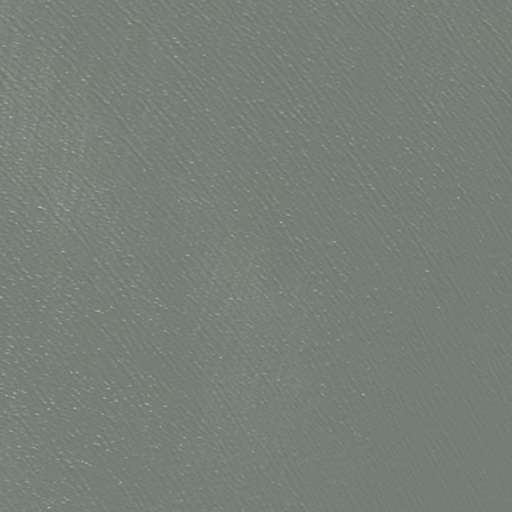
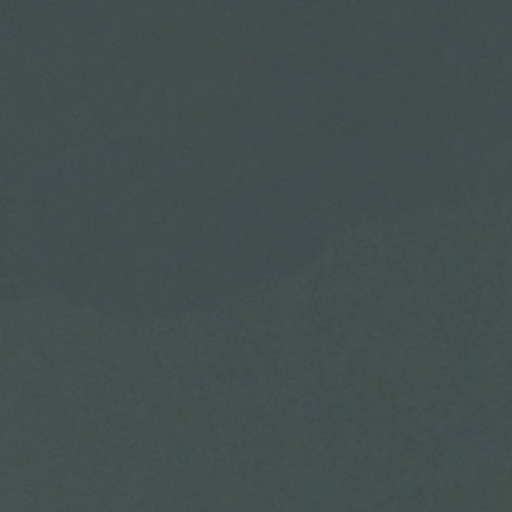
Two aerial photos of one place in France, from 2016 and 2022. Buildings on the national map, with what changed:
[]

